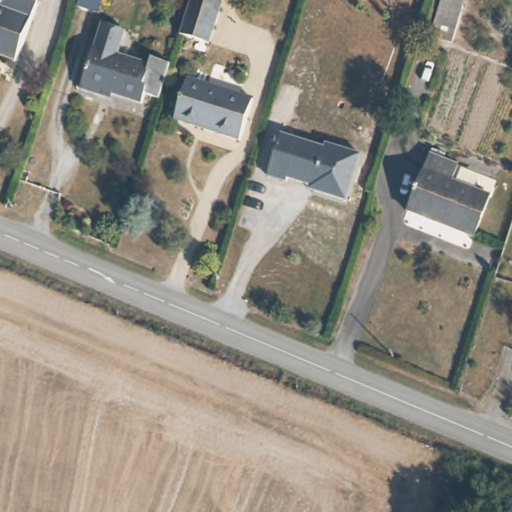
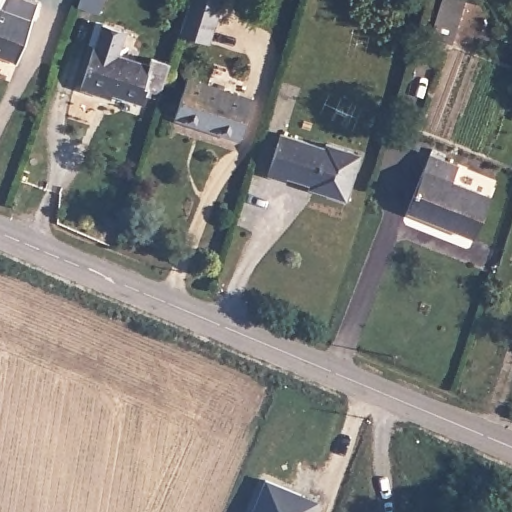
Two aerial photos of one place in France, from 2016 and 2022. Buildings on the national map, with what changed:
unchanged [(0,51),(0,0),(36,0),(17,57),(0,51)]
unchanged [(92,0),(100,0),(99,2),(92,0)]
unchanged [(181,33),(193,0),(223,0),(217,19),(209,43),(181,33)]
unchanged [(435,19),(440,0),(463,0),(455,25),(435,19)]
unchanged [(148,94),(145,101),(106,88),(104,94),(82,85),(96,43),(98,44),(106,20),(128,28),(120,52),(151,63),(153,58),(172,64),(161,100),(148,94)]
unchanged [(238,135),(174,113),(186,73),(253,95),(238,135)]
unchanged [(337,211),(304,200),(306,196),(278,187),(276,192),(257,184),(271,143),(315,158),(317,153),(351,166),(337,211)]
unchanged [(449,178),(490,195),(473,238),(404,210),(426,152),(454,164),(449,178)]
new [(248,510),(262,477),(297,492),(296,495),(312,502),(308,512),(252,512),(248,510)]

